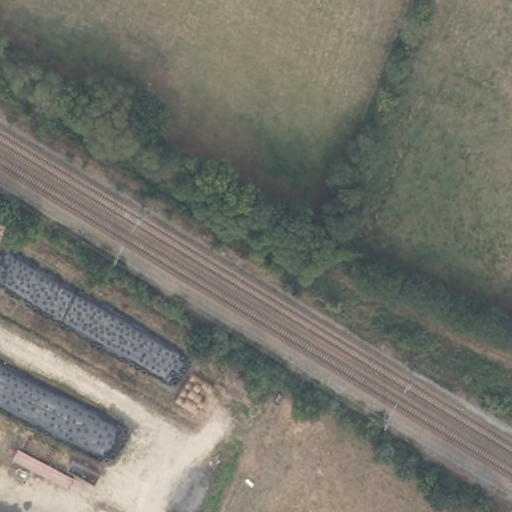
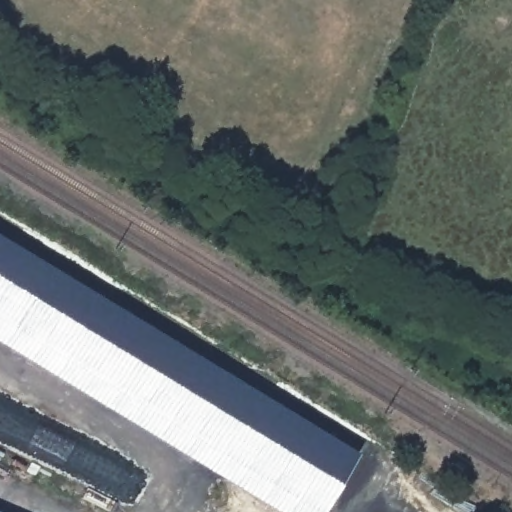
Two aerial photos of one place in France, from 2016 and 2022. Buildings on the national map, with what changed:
new [(358,452),(322,512),(283,512),(0,341),(0,234),(358,452)]

